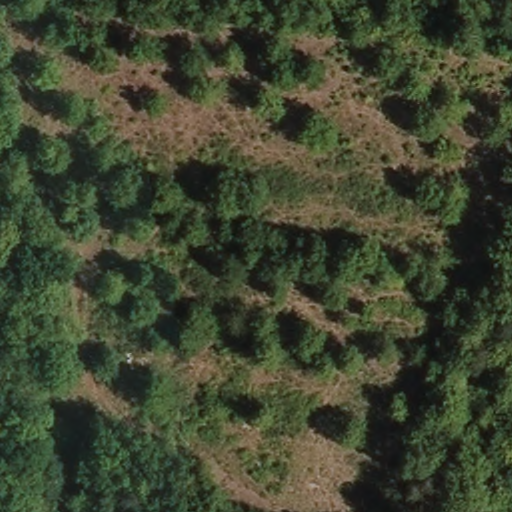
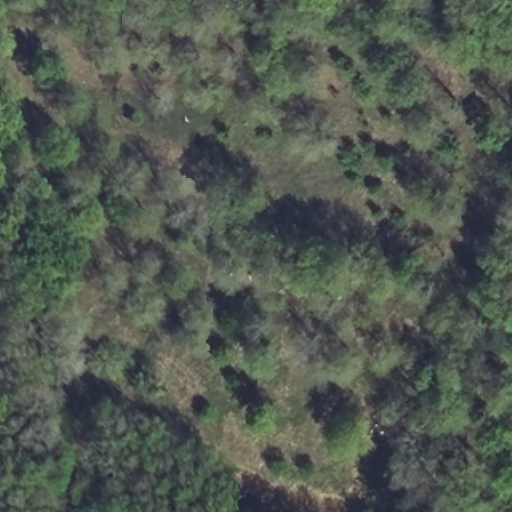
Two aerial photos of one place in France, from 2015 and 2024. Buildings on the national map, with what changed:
[]

